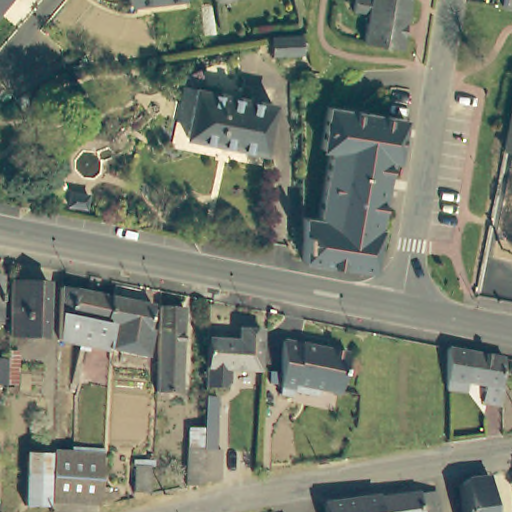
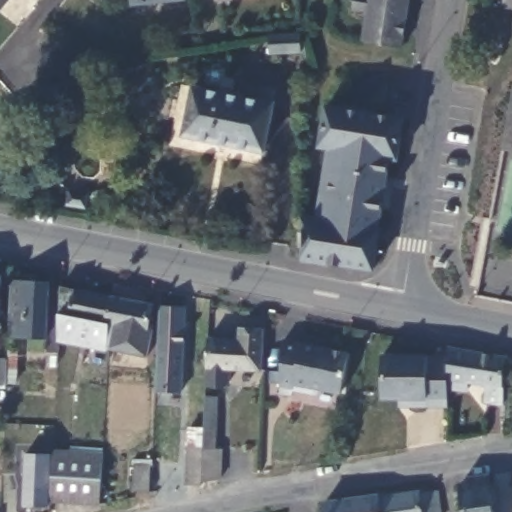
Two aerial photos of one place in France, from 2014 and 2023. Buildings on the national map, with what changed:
unchanged [(0,0),(12,0),(0,13),(0,0)]
unchanged [(129,7),(128,0),(183,0),(184,2),(129,7)]
unchanged [(215,3),(215,0),(231,0),(231,1),(215,3)]
unchanged [(395,47),(387,46),(364,42),(368,14),(353,11),(355,1),(355,0),(410,0),(406,23),(404,36),(402,49),(395,47)]
unchanged [(500,9),(501,0),(512,0),(512,11),(500,9)]
unchanged [(270,54),(269,36),(299,35),(300,52),(270,54)]
unchanged [(271,104),(261,151),(182,135),(192,88),(271,104)]
unchanged [(377,230),(373,247),(370,271),(330,265),(314,261),(299,261),(298,216),(315,219),(321,184),(326,149),(317,147),(324,106),(340,109),(341,106),(365,110),(364,113),(401,119),(397,144),(393,160),(386,159),(377,215),(375,229),(377,230)]
unchanged [(512,109),(512,153),(503,151),(512,109)]
unchanged [(7,324),(10,282),(47,284),(44,337),(7,336),(7,324)]
unchanged [(108,325),(107,350),(57,340),(59,286),(109,297),(111,297),(105,325),(108,325)]
unchanged [(152,306),(147,332),(152,333),(147,357),(107,350),(112,326),(108,325),(105,325),(111,297),(152,306)]
unchanged [(184,308),(181,393),(156,392),(159,307),(184,308)]
unchanged [(257,371),(227,370),(227,383),(222,389),(205,388),(207,340),(237,342),(238,329),(260,330),(257,371)]
unchanged [(339,395),(317,390),(311,395),(292,391),(291,397),(279,395),(282,341),(347,355),(339,395)]
unchanged [(500,387),(502,388),(500,405),(483,402),(486,385),(467,382),(467,391),(447,391),(447,364),(448,350),(467,353),(501,358),(500,387)]
new [(448,357),(447,364),(447,391),(447,408),(402,407),(402,400),(385,398),(385,355),(448,355),(448,357)]
unchanged [(0,359),(6,359),(5,385),(0,385),(0,359)]
unchanged [(219,481),(202,485),(202,487),(185,487),(187,432),(204,432),(205,398),(216,399),(215,433),(215,451),(220,451),(219,481)]
unchanged [(102,454),(100,505),(50,501),(52,450),(102,454)]
unchanged [(26,455),(49,456),(47,507),(23,505),(26,455)]
unchanged [(135,471),(151,472),(149,498),(133,497),(135,471)]
unchanged [(491,512),(462,512),(459,485),(462,481),(466,478),(487,477),(491,512)]
unchanged [(317,505),(370,497),(371,500),(428,490),(431,512),(318,512),(317,505)]

